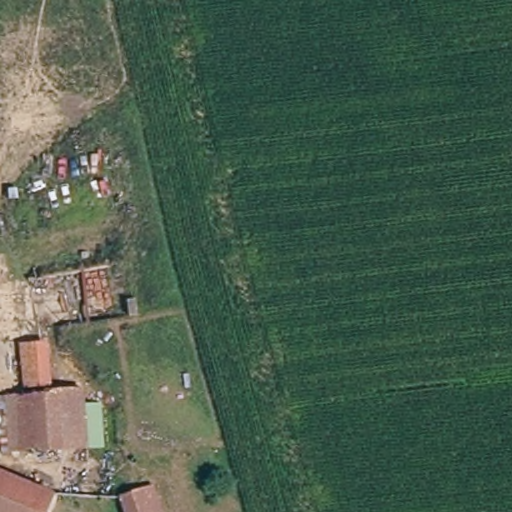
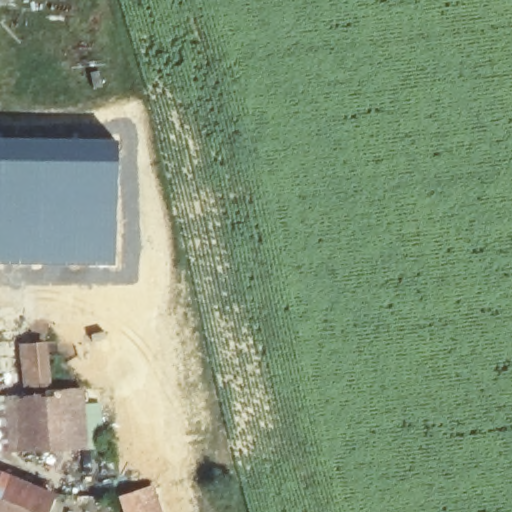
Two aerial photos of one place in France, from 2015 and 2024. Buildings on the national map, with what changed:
new [(117,266),(56,263),(0,263),(0,136),(116,138),(117,266)]
unchanged [(22,390),(19,340),(41,338),(45,388),(22,390)]
unchanged [(72,386),(76,443),(3,445),(0,392),(22,390),(45,388),(72,386)]
unchanged [(39,512),(0,512),(0,466),(49,487),(39,512)]
unchanged [(127,512),(122,497),(154,486),(164,512),(127,512)]

